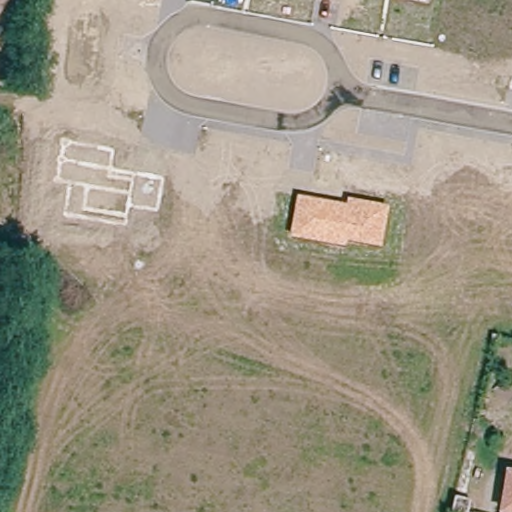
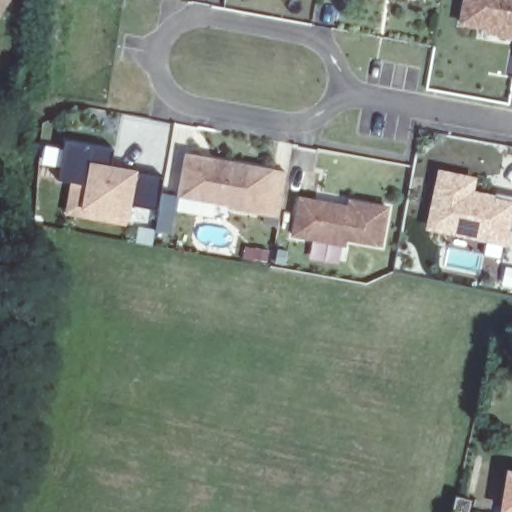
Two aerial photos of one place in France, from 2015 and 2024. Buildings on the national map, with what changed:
new [(132,204),(128,218),(80,210),(85,185),(58,181),(66,140),(115,148),(111,166),(164,176),(157,210),(132,204)]
new [(266,212),(230,206),(231,204),(200,198),(180,194),(187,154),(202,157),(214,159),(273,170),(288,172),(280,215),(266,212)]
new [(475,190),(512,197),(512,231),(507,247),(425,230),(438,169),(478,178),(475,190)]
unchanged [(346,204),(348,199),(389,207),(382,247),(347,242),(346,247),(291,238),(297,196),(346,204)]
unchanged [(512,472),(512,510),(506,510),(512,472)]
unchanged [(472,504),(471,512),(453,512),(455,501),(472,504)]

